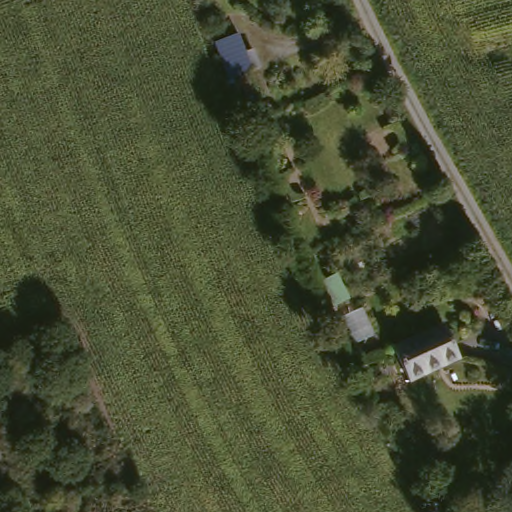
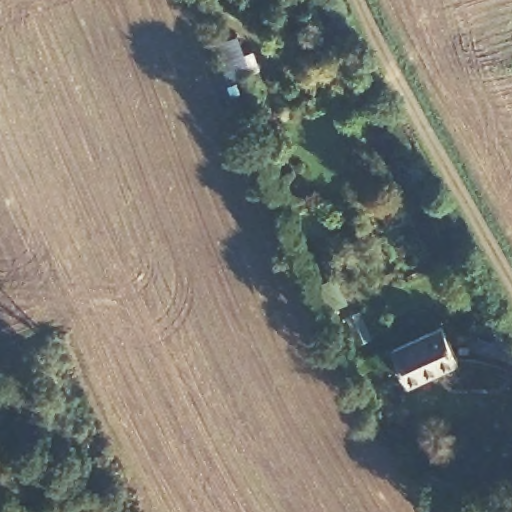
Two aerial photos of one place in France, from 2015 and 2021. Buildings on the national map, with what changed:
unchanged [(239,31),(258,69),(238,81),(219,40),(239,31)]
unchanged [(457,328),(470,364),(414,384),(401,350),(457,328)]

